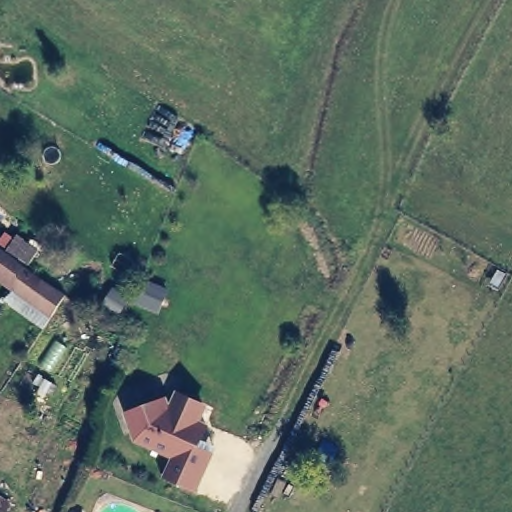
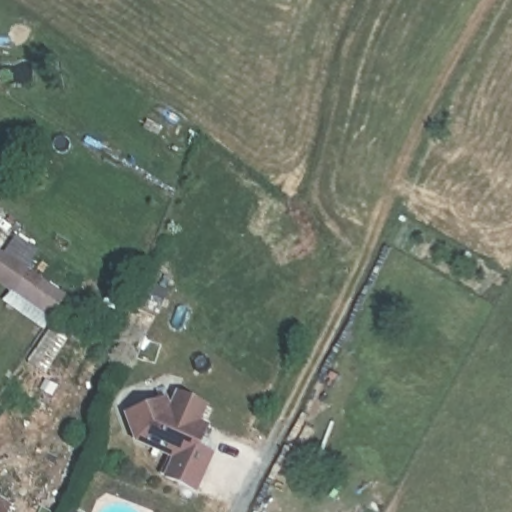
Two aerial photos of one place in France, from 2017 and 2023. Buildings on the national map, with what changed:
unchanged [(60,289),(47,310),(0,278),(0,247),(60,289)]
unchanged [(182,396),(209,408),(204,424),(211,427),(205,450),(215,455),(199,493),(172,479),(180,457),(138,438),(130,414),(182,396)]
unchanged [(5,503),(0,510),(0,500),(5,503)]
unchanged [(79,505),(88,508),(87,512),(77,512),(79,505)]

